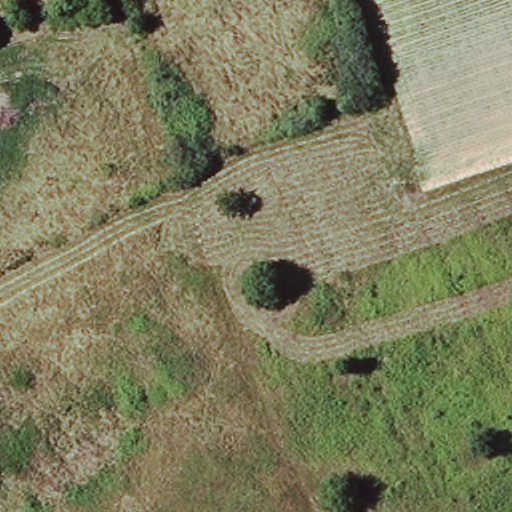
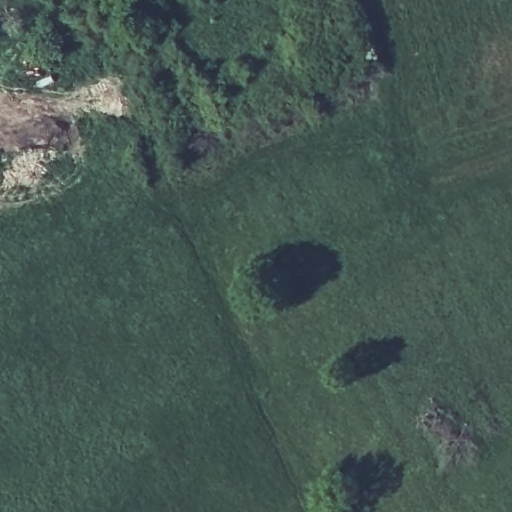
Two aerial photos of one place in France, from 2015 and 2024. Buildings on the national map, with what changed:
[]

